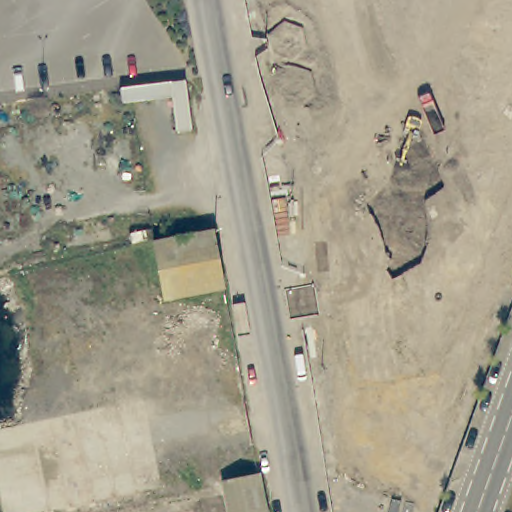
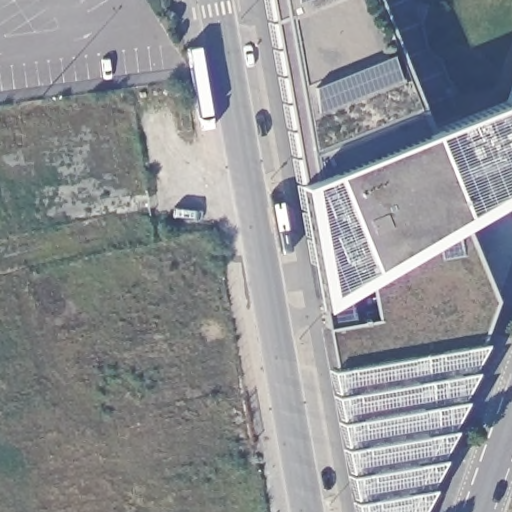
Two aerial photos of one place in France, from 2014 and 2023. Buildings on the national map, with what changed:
new [(472,216),(495,300),(483,344),(432,488),(423,512),(356,512),(354,502),(328,371),(339,369),(339,295),(318,307),(295,183),(310,179),(273,0),(384,0),(437,126),(503,99),(512,75),(512,193),(472,216)]
demolished [(175,138),(174,124),(171,101),(121,107),(120,92),(185,84),(190,123),(191,135),(175,138)]
demolished [(507,168),(512,157),(512,170),(507,168)]

